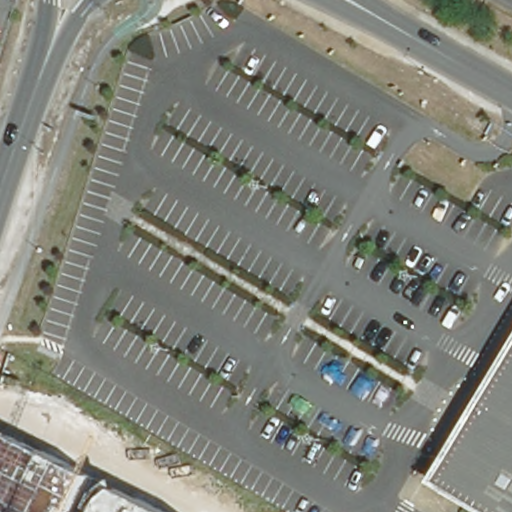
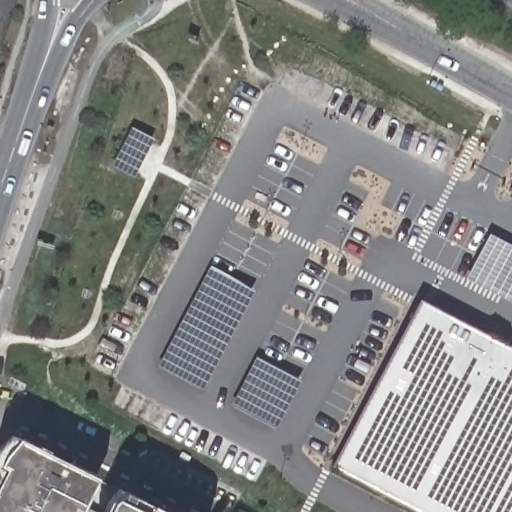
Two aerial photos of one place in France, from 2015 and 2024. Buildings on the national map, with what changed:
new [(512,242),(512,298),(470,276),(493,232),(512,242)]
new [(257,288),(207,386),(162,363),(212,265),(257,288)]
new [(428,512),(338,465),(427,297),(512,342),(512,512),(428,512)]
demolished [(492,512),(434,476),(512,347),(512,512),(492,512)]
new [(302,379),(281,425),(235,402),(260,356),(302,379)]
new [(0,512),(0,445),(10,433),(96,476),(78,512),(0,512)]
demolished [(181,512),(76,512),(87,480),(114,488),(182,508),(181,512)]
new [(122,489),(168,512),(102,512),(107,500),(122,489)]
demolished [(266,512),(237,512),(244,500),(266,512)]

